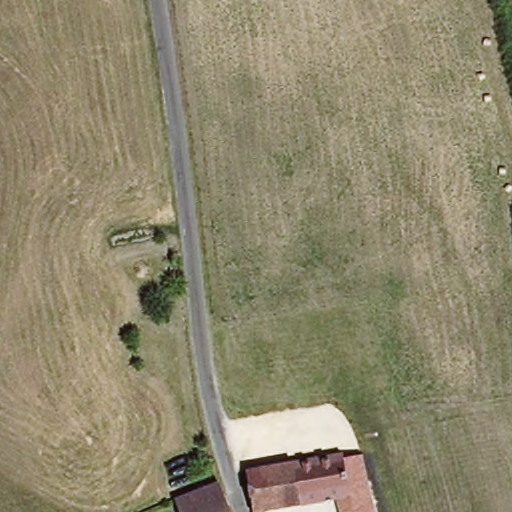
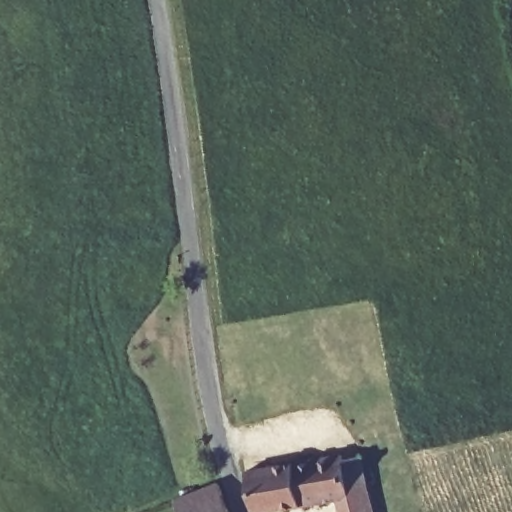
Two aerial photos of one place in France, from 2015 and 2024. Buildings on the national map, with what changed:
unchanged [(254,512),(245,478),(329,460),(344,461),(364,458),(369,491),(373,512),(340,512),(337,499),(278,512),(254,512)]
unchanged [(224,512),(176,512),(172,498),(215,484),(224,512)]

